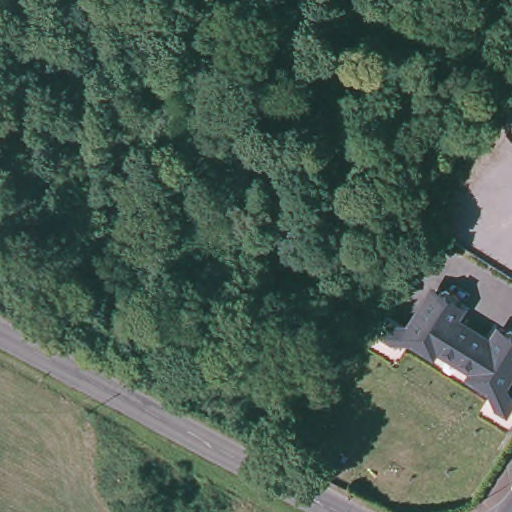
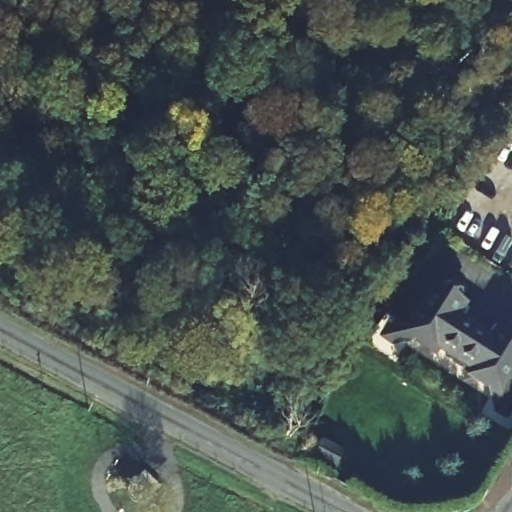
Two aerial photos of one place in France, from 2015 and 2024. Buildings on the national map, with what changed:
unchanged [(453,353),(432,341),(428,347),(426,345),(405,332),(400,342),(388,343),(375,335),(383,323),(392,322),(406,330),(435,286),(457,301),(447,317),(468,330),(453,353)]
unchanged [(468,330),(489,343),(500,327),(512,335),(512,359),(495,387),(508,396),(510,404),(502,417),(490,409),(486,398),(493,387),(487,384),(470,373),(475,367),(465,361),(453,353),(468,330)]

